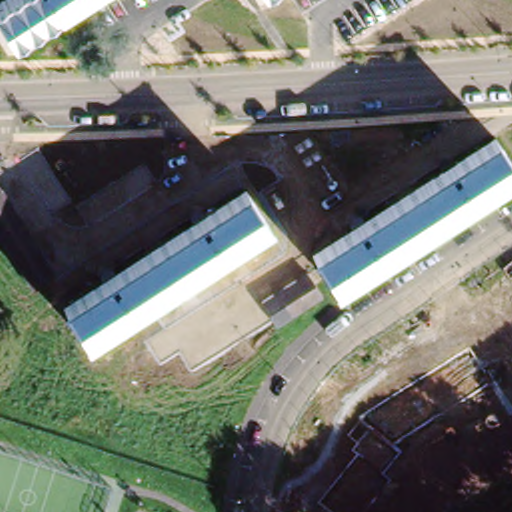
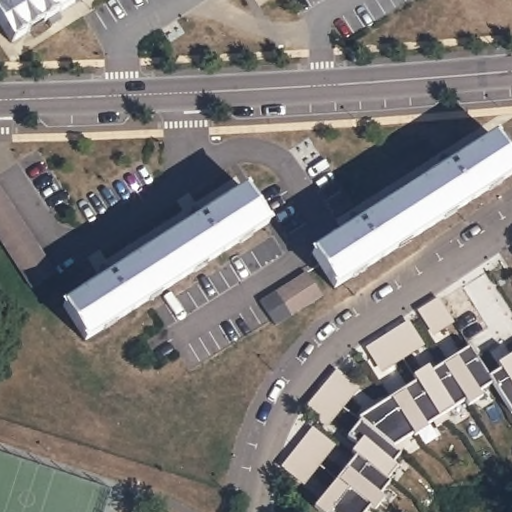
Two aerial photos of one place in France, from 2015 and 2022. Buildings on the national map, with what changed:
unchanged [(0,29),(0,0),(69,0),(7,39),(0,29)]
unchanged [(334,290),(313,259),(493,142),(512,171),(512,176),(334,290)]
unchanged [(50,273),(26,287),(0,247),(0,194),(50,273)]
unchanged [(267,227),(86,343),(65,311),(245,195),(267,227)]
unchanged [(320,295),(276,324),(261,300),(306,271),(320,295)]
new [(441,297),(456,320),(439,330),(425,307),(441,297)]
new [(405,324),(420,346),(404,357),(388,366),(374,343),(389,333),(405,324)]
new [(495,382),(481,391),(484,396),(471,404),(444,363),(472,345),(491,376),(495,382)]
new [(503,368),(501,363),(512,354),(512,409),(491,375),(503,368)]
new [(468,399),(442,416),(415,374),(430,365),(433,369),(444,363),(468,399)]
new [(335,373),(356,390),(345,404),(333,419),(312,402),(324,387),(335,373)]
new [(442,416),(429,424),(430,426),(416,434),(392,396),(418,379),(442,416)]
new [(415,432),(395,444),(359,416),(392,396),(415,432)]
new [(403,451),(395,461),(399,464),(389,478),(357,453),(353,449),(359,443),(349,434),(361,418),(403,451)]
new [(312,431),(333,447),(321,462),(309,477),(288,459),(300,444),(312,431)]
new [(392,480),(381,493),(386,496),(376,508),(338,477),(357,453),(392,480)]
new [(371,504),(365,512),(331,512),(329,511),(328,512),(323,512),(315,505),(338,477),(371,504)]

